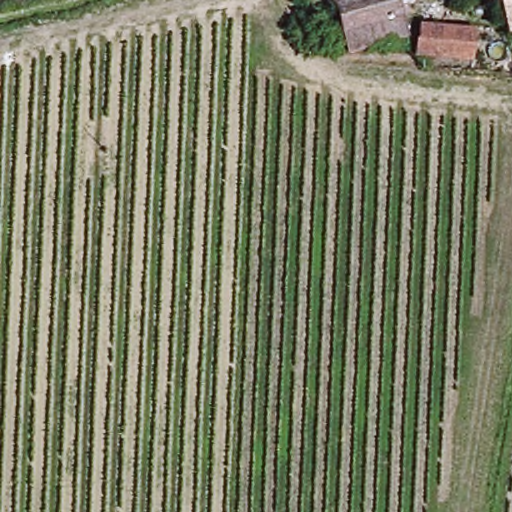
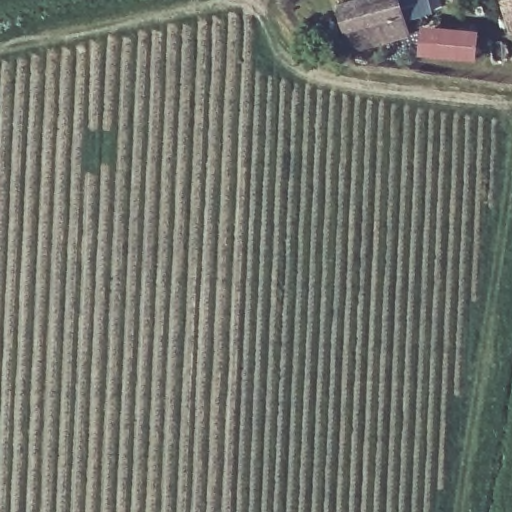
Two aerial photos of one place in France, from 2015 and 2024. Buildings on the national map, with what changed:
unchanged [(408,38),(351,56),(340,5),(358,0),(397,0),(408,38)]
unchanged [(510,30),(501,0),(512,0),(512,30),(510,30)]
unchanged [(474,61),(415,52),(418,23),(477,30),(474,61)]

